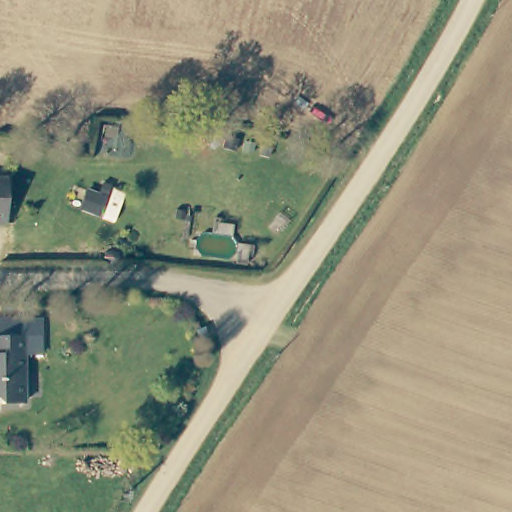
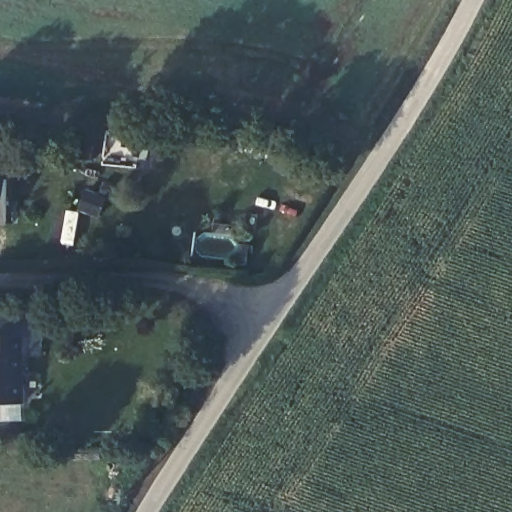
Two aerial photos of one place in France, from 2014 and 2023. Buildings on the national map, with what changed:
unchanged [(4,180),(4,222),(0,222),(0,180),(4,180)]
unchanged [(26,405),(1,405),(0,401),(0,338),(27,338),(26,405)]

